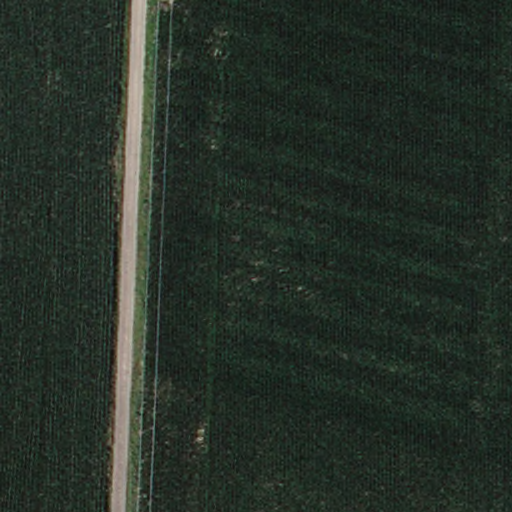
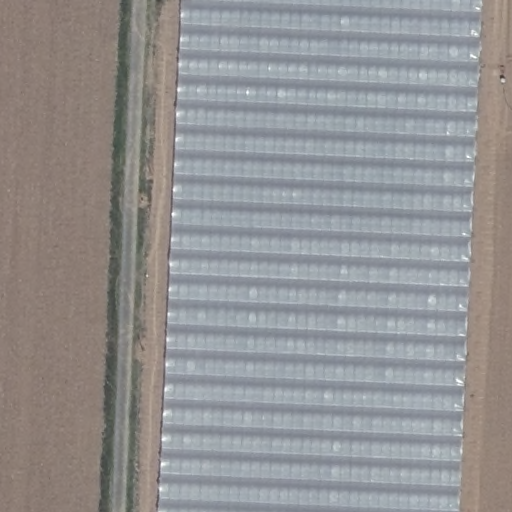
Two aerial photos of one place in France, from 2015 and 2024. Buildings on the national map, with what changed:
demolished [(154,345),(167,28),(199,36),(200,0),(489,0),(463,431),(154,345)]
new [(483,0),(461,512),(159,512),(181,0),(483,0)]
demolished [(509,0),(512,0),(512,447),(485,440),(509,0)]

